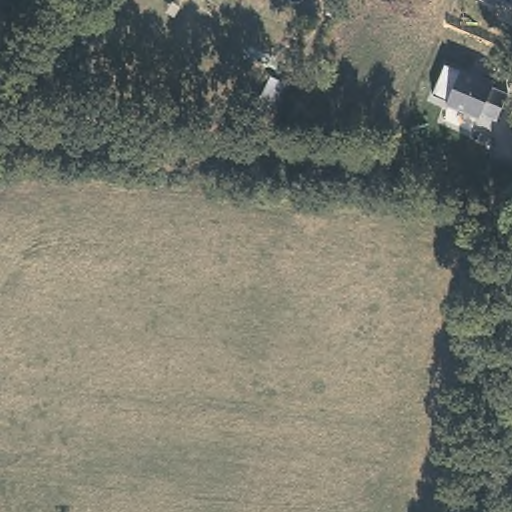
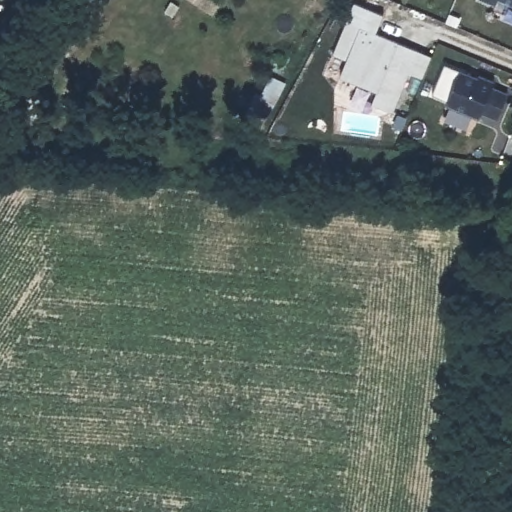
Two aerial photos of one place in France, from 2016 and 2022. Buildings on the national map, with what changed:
unchanged [(495,6),(483,0),(499,0),(495,6)]
unchanged [(512,3),(505,0),(512,0),(512,3)]
new [(345,61),(332,56),(354,2),(385,14),(377,32),(434,56),(425,79),(411,74),(396,112),(373,105),(379,92),(340,77),(345,61)]
unchanged [(447,66),(462,72),(478,79),(480,76),(496,82),(493,87),(510,95),(499,119),(482,112),(479,119),(447,107),(450,101),(433,96),(447,66)]

